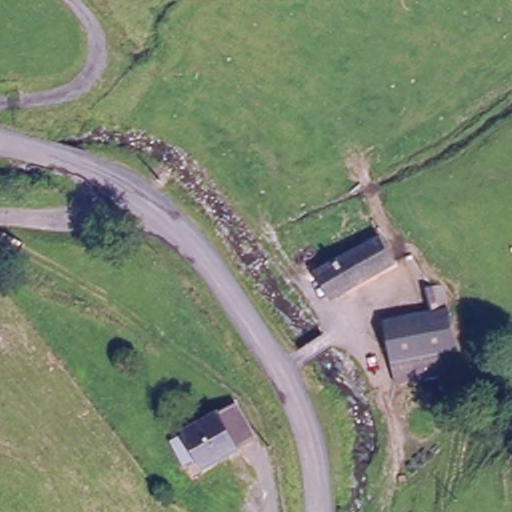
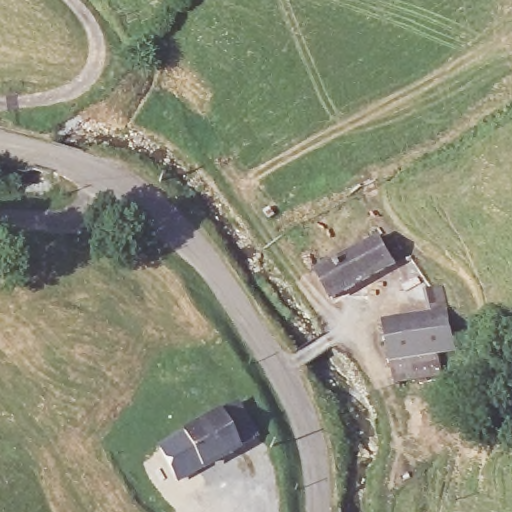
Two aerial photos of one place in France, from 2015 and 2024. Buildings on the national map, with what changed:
unchanged [(388,267),(341,292),(337,286),(329,290),(316,269),(375,241),(388,267)]
unchanged [(381,318),(428,309),(423,283),(433,280),(444,278),(457,348),(438,351),(441,370),(394,382),(381,318)]
unchanged [(187,425),(198,418),(234,402),(249,437),(213,453),(201,458),(187,425)]

